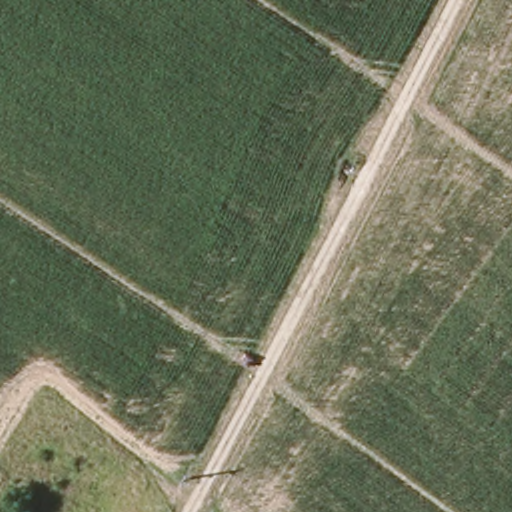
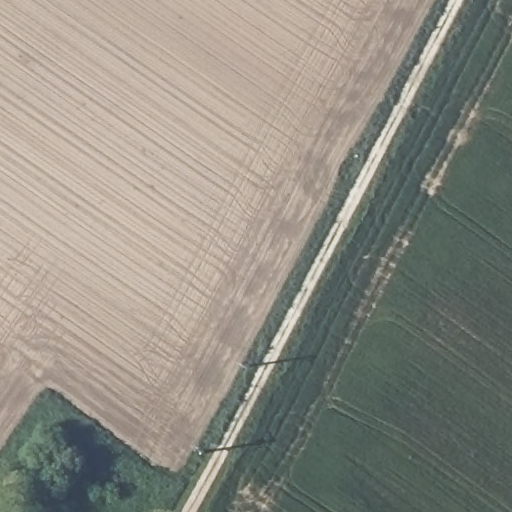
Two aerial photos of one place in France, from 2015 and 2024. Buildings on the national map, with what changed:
[]

